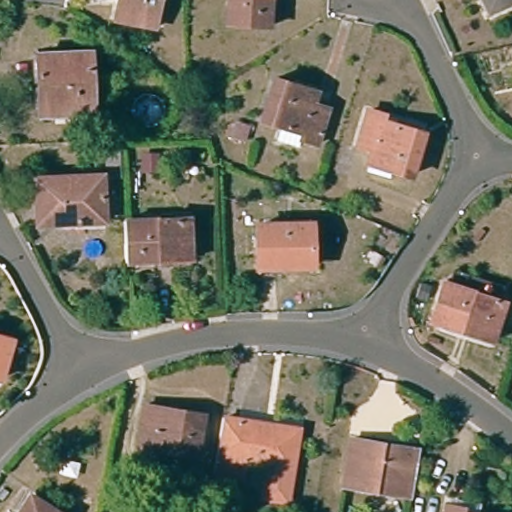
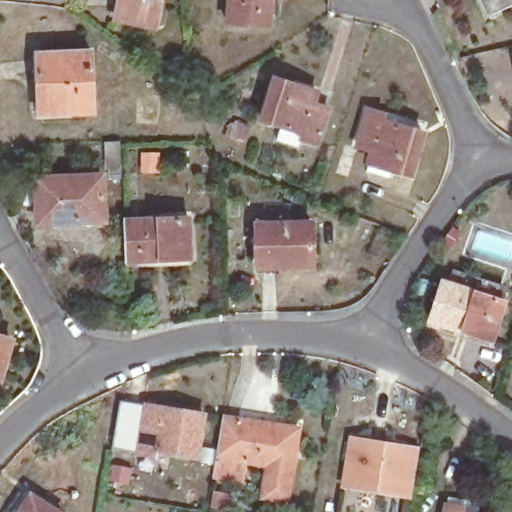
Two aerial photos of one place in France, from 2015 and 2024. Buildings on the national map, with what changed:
unchanged [(120,14),(123,0),(163,0),(159,21),(120,14)]
unchanged [(225,0),(269,0),(267,22),(224,18),(225,0)]
unchanged [(487,7),(484,0),(502,0),(487,7)]
unchanged [(41,73),(32,71),(32,50),(91,49),(91,108),(41,108),(41,73)]
unchanged [(274,75),(295,82),(313,88),(312,93),(310,101),(328,106),(317,141),(297,135),(301,127),(260,115),(274,75)]
unchanged [(376,146),(377,139),(360,135),(372,98),(389,104),(387,109),(426,122),(414,162),(393,156),(375,149),(376,146)]
unchanged [(106,147),(122,146),(122,187),(111,186),(111,177),(107,177),(106,147)]
unchanged [(35,223),(34,178),(101,179),(101,223),(35,223)]
unchanged [(190,217),(193,258),(127,259),(127,218),(190,217)]
unchanged [(260,266),(259,222),(312,223),(313,265),(260,266)]
unchanged [(511,302),(498,341),(435,319),(448,281),(511,302)]
unchanged [(0,371),(0,332),(10,335),(0,371)]
unchanged [(156,441),(154,448),(137,445),(147,398),(207,409),(197,449),(156,441)]
unchanged [(219,455),(225,414),(302,425),(291,501),(268,498),(273,465),(219,455)]
unchanged [(351,433),(368,436),(380,438),(418,444),(411,492),(342,480),(351,433)]
unchanged [(62,506),(59,512),(15,512),(27,488),(62,506)]
unchanged [(468,507),(467,512),(450,512),(452,503),(468,507)]

